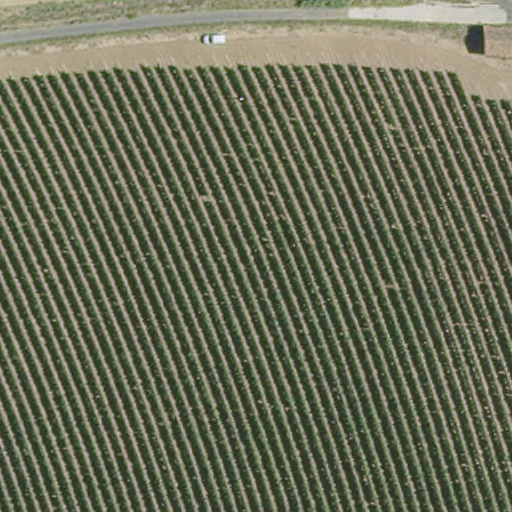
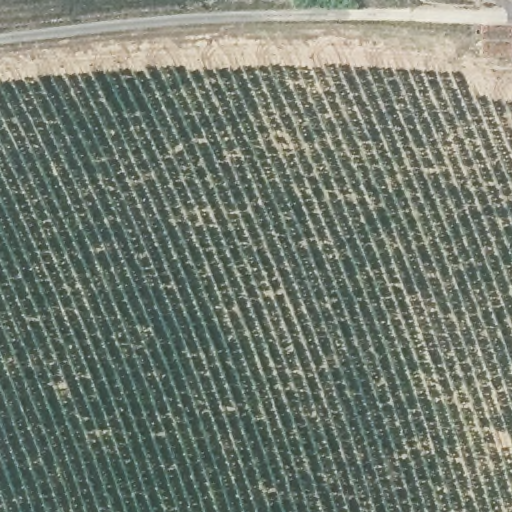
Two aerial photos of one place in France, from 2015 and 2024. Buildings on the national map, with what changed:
unchanged [(512,30),(512,57),(483,57),(482,28),(512,30)]

